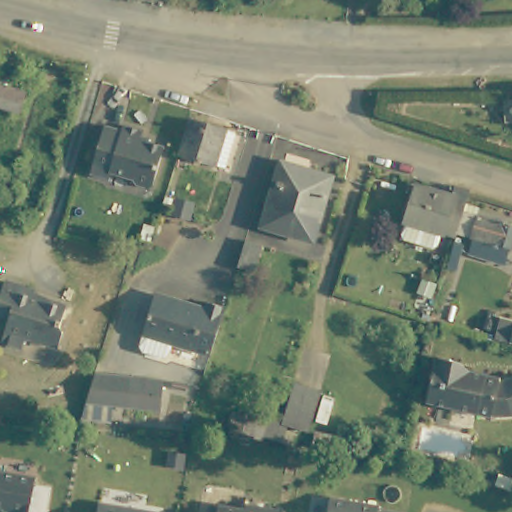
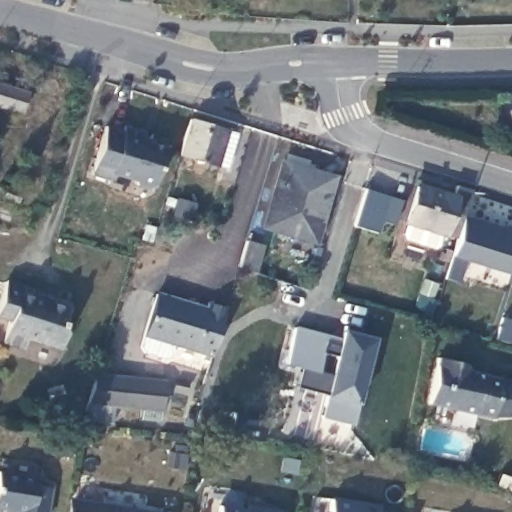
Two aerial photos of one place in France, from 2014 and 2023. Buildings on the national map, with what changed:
unchanged [(23,92),(16,114),(0,109),(0,84),(23,92)]
unchanged [(119,127),(120,122),(142,129),(140,137),(162,144),(148,189),(128,184),(130,177),(109,170),(107,176),(87,170),(103,121),(119,127)]
unchanged [(228,164),(216,160),(214,167),(177,156),(187,124),(224,136),(236,140),(228,164)]
unchanged [(270,227),(264,226),(274,201),(283,162),(295,161),(335,175),(323,215),(315,240),(270,227)]
unchanged [(428,247),(401,239),(398,234),(402,222),(415,180),(449,190),(451,184),(453,180),(471,186),(469,191),(464,206),(456,230),(455,234),(454,237),(437,232),(433,245),(428,247)]
new [(365,188),(408,202),(402,222),(400,227),(382,222),(377,235),(354,227),(365,188)]
unchanged [(16,196),(12,210),(0,206),(0,190),(16,196)]
unchanged [(512,244),(508,260),(453,241),(454,237),(455,234),(456,230),(464,206),(512,222),(512,244)]
unchanged [(260,249),(251,277),(235,273),(244,244),(260,249)]
demolished [(217,254),(213,267),(193,262),(198,247),(217,254)]
unchanged [(33,286),(31,290),(62,301),(54,323),(59,326),(51,351),(23,340),(17,353),(0,347),(0,342),(9,319),(3,317),(1,322),(0,321),(0,284),(3,275),(33,286)]
unchanged [(208,307),(204,320),(220,326),(211,353),(176,341),(172,351),(163,356),(148,351),(140,343),(156,291),(208,307)]
unchanged [(512,342),(502,339),(509,320),(512,321),(512,342)]
new [(324,394),(298,388),(303,369),(285,364),(295,326),(340,338),(342,329),(344,325),(381,333),(377,355),(372,353),(355,425),(320,417),(324,394)]
unchanged [(512,413),(504,416),(482,416),(482,417),(418,402),(429,357),(452,362),(450,372),(456,373),(461,371),(492,378),(491,381),(493,381),(509,375),(512,383),(512,413)]
unchanged [(162,380),(160,412),(85,407),(94,374),(162,380)]
demolished [(316,397),(302,438),(278,430),(292,388),(316,397)]
unchanged [(260,423),(255,446),(230,441),(235,419),(260,423)]
unchanged [(30,486),(29,492),(44,494),(41,512),(0,512),(0,481),(30,486)]
unchanged [(329,500),(377,507),(376,512),(380,512),(327,512),(329,500)]
unchanged [(113,512),(94,512),(94,509),(113,512)]
unchanged [(240,511),(250,512),(239,512),(240,511)]

